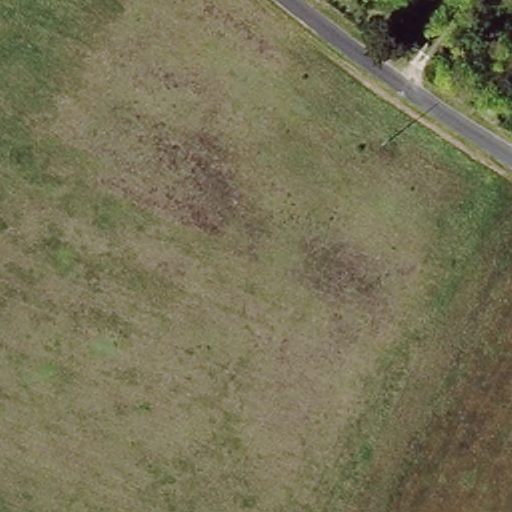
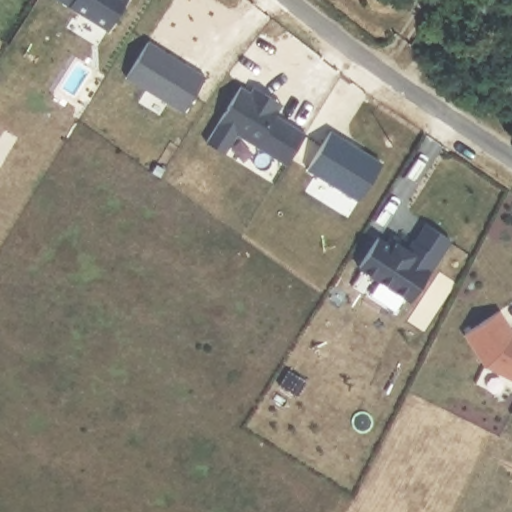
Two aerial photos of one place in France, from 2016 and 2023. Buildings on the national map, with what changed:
new [(107,30),(59,0),(126,0),(107,30)]
new [(185,111),(127,76),(147,41),(205,77),(185,111)]
new [(287,165),(237,134),(225,154),(205,141),(240,85),(249,91),(253,85),(282,105),(277,114),(305,135),(287,165)]
new [(432,272),(429,271),(411,301),(357,267),(377,237),(390,245),(395,240),(408,249),(425,223),(453,240),(432,272)]
new [(485,366),(462,335),(499,310),(512,330),(512,380),(485,366)]

